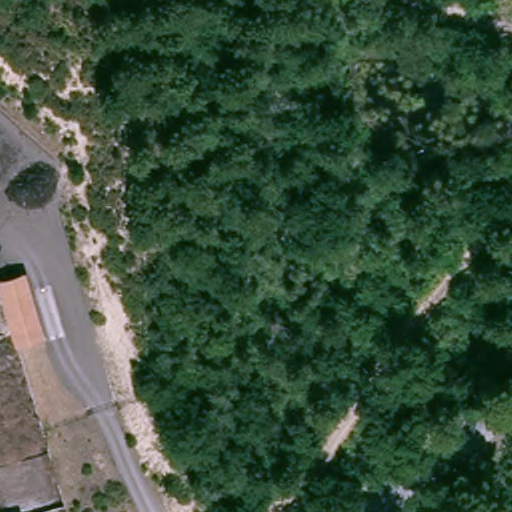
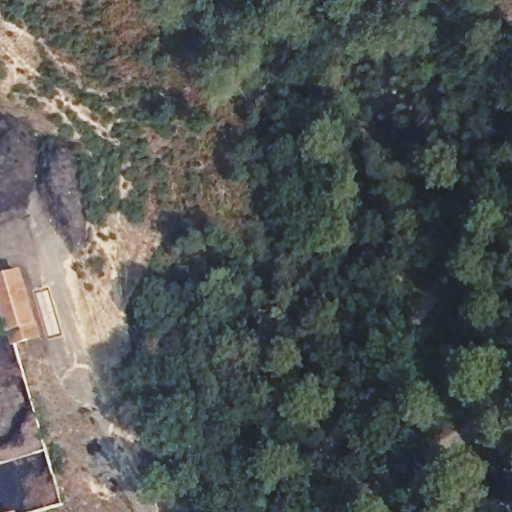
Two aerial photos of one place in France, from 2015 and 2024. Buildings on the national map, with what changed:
unchanged [(18,271),(36,334),(13,341),(0,295),(0,277),(18,271)]

